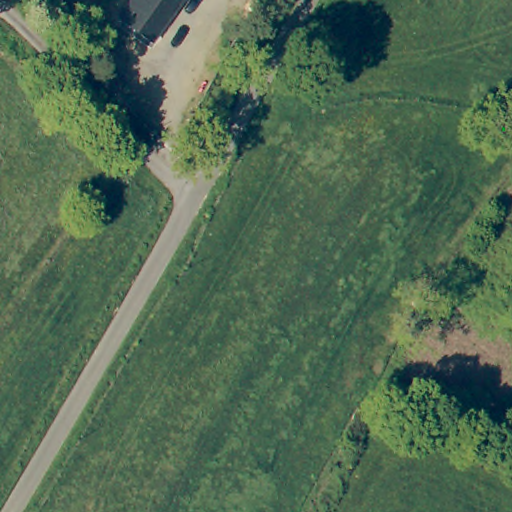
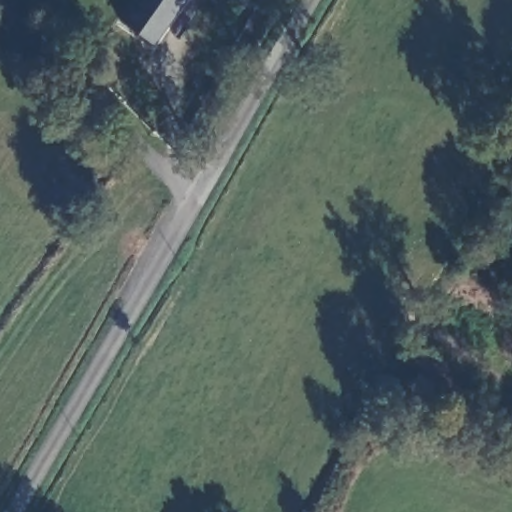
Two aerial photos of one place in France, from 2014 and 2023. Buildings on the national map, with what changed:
unchanged [(126,0),(174,0),(142,47),(109,25),(126,0)]

